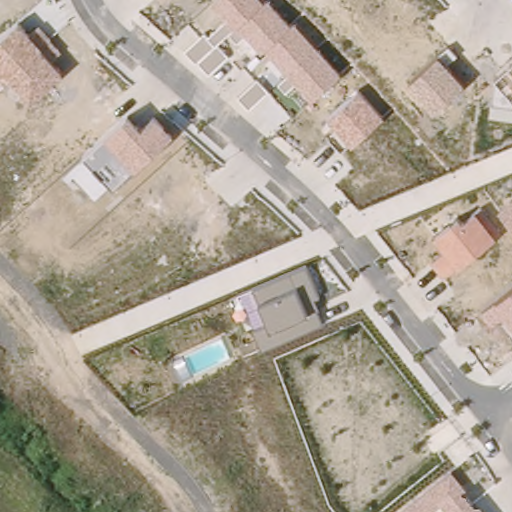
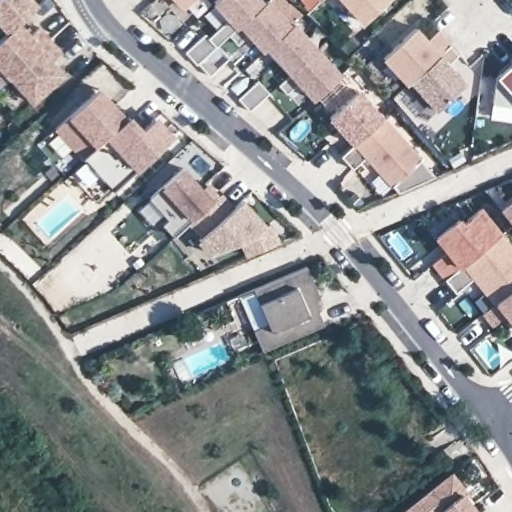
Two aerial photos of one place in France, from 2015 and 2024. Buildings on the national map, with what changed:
new [(17,22),(7,32),(0,24),(0,0),(36,0),(38,3),(17,22)]
new [(174,0),(192,0),(182,9),(174,0)]
unchanged [(264,0),(265,1),(266,0),(270,0),(292,24),(295,21),(343,75),(312,98),(295,81),(285,88),(279,81),(287,72),(267,47),(265,51),(245,31),(237,42),(230,34),(217,45),(228,55),(209,72),(186,51),(204,32),(207,37),(226,17),(211,2),(212,0),(264,0)]
new [(342,0),(387,0),(362,22),(342,0)]
unchanged [(28,32),(39,25),(63,50),(52,60),(65,75),(32,105),(5,77),(0,82),(0,38),(17,22),(28,32)]
new [(410,81),(405,84),(382,58),(416,27),(438,52),(410,81)]
unchanged [(447,42),(457,52),(447,61),(467,82),(435,109),(410,81),(447,42)]
new [(491,103),(495,72),(512,57),(512,106),(491,103)]
new [(95,146),(83,157),(55,129),(67,117),(98,87),(127,116),(95,146)]
unchanged [(358,87),(385,117),(352,145),(327,117),(358,87)]
unchanged [(129,113),(141,127),(155,115),(173,135),(112,190),(83,157),(129,113)]
new [(365,157),(355,167),(342,155),(352,145),(385,117),(436,175),(398,192),(365,157)]
new [(161,225),(167,219),(148,198),(182,168),(201,189),(206,185),(217,197),(190,222),(173,237),(161,225)]
new [(217,197),(220,195),(232,209),(241,201),(264,225),(273,224),(277,243),(248,255),(242,242),(212,254),(199,240),(202,236),(190,222),(217,197)]
unchanged [(512,196),(512,222),(500,206),(512,196)]
new [(472,278),(455,291),(444,275),(460,265),(497,237),(479,213),(484,209),(512,244),(512,287),(492,302),(472,278)]
unchanged [(461,222),(476,210),(497,237),(460,265),(442,277),(431,261),(443,249),(433,232),(458,217),(461,222)]
unchanged [(303,264),(319,298),(313,301),(322,323),(262,347),(253,327),(267,322),(252,288),(303,264)]
unchanged [(502,313),(492,322),(482,309),(512,287),(512,325),(502,313)]
unchanged [(450,471),(467,489),(462,492),(478,512),(399,512),(450,471)]

